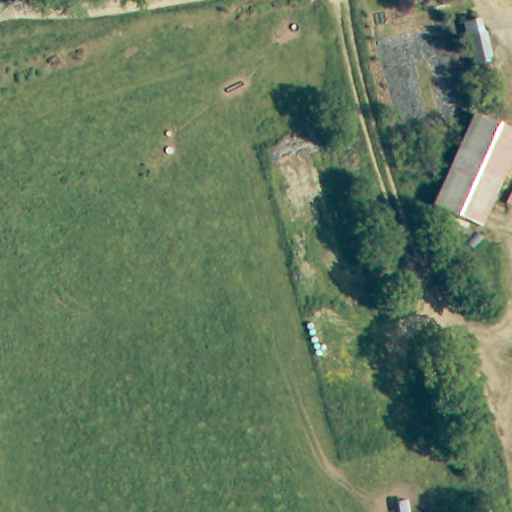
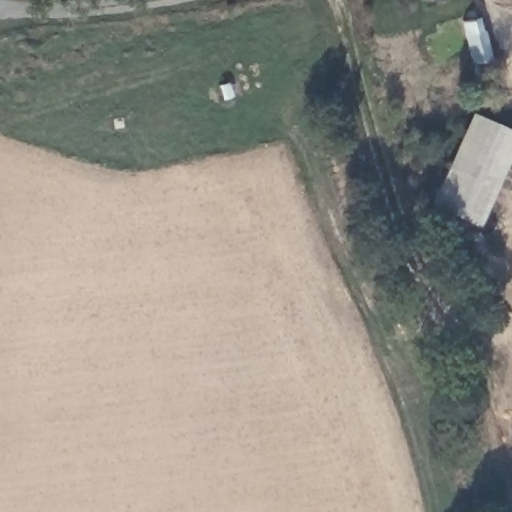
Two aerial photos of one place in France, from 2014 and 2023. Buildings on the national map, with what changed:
unchanged [(480,18),(492,62),(475,66),(462,23),(480,18)]
unchanged [(469,115),(512,132),(512,149),(501,174),(479,225),(440,206),(430,201),(469,115)]

